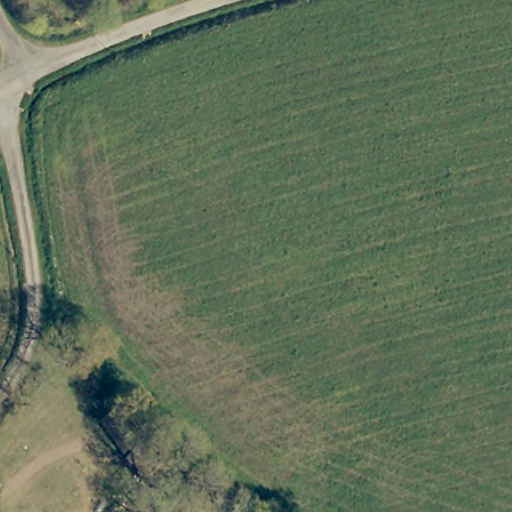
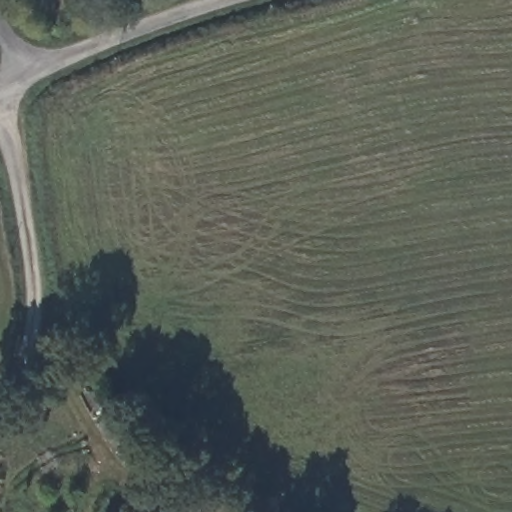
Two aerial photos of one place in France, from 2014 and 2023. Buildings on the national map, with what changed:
unchanged [(156,471),(137,456),(149,441),(167,457),(156,471)]

